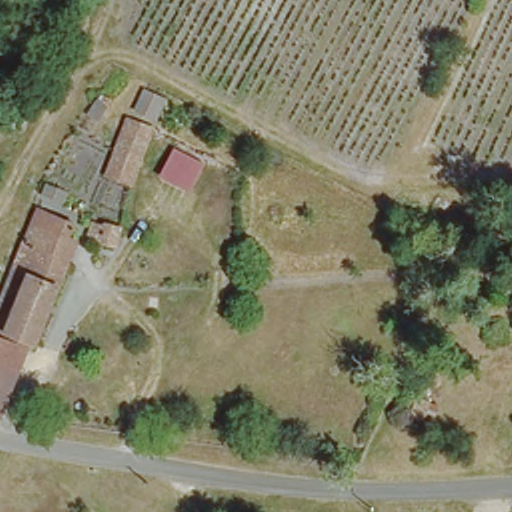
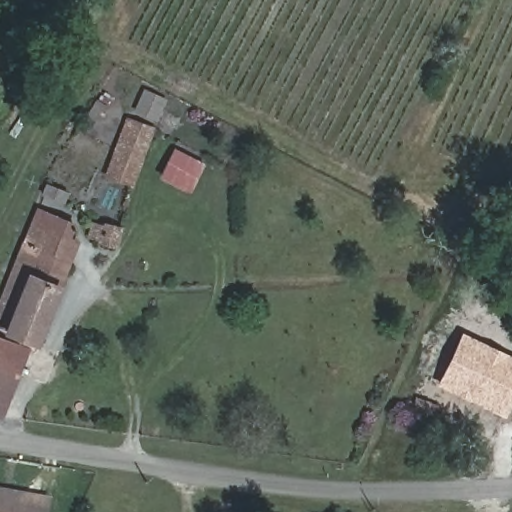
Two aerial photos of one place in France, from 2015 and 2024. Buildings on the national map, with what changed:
unchanged [(165,96),(157,119),(133,107),(142,86),(165,96)]
unchanged [(152,120),(133,182),(108,175),(127,113),(152,120)]
new [(162,178),(176,151),(206,166),(191,193),(162,178)]
unchanged [(22,228),(24,228),(30,211),(34,213),(64,223),(59,237),(57,242),(53,255),(62,259),(31,343),(23,340),(19,350),(0,405),(0,290),(22,228)]
unchanged [(120,222),(114,240),(88,233),(89,221),(103,224),(103,218),(120,222)]
new [(437,385),(462,332),(512,356),(512,403),(505,418),(437,385)]
new [(51,498),(48,512),(0,512),(0,490),(51,498)]

